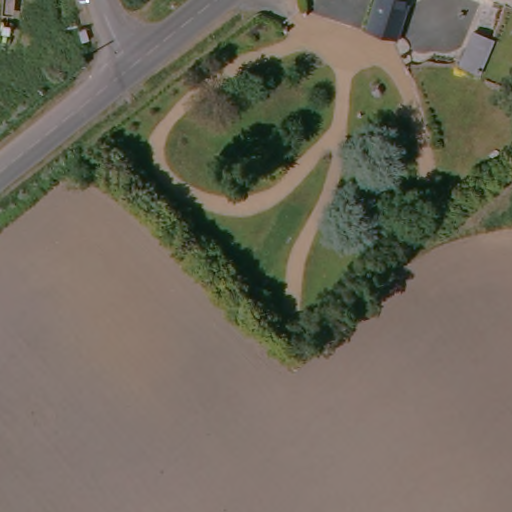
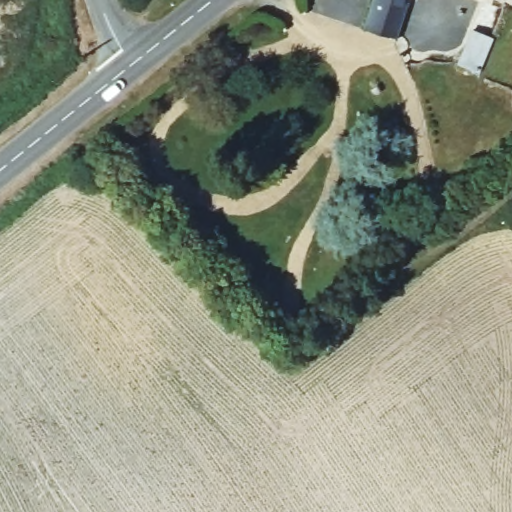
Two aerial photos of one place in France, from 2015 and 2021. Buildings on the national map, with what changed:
unchanged [(399,41),(366,31),(375,0),(411,0),(399,38),(399,41)]
unchanged [(501,51),(491,87),(489,93),(462,83),(474,41),(501,51)]

